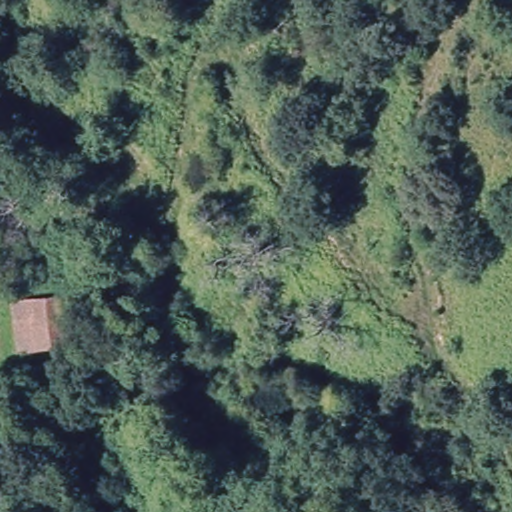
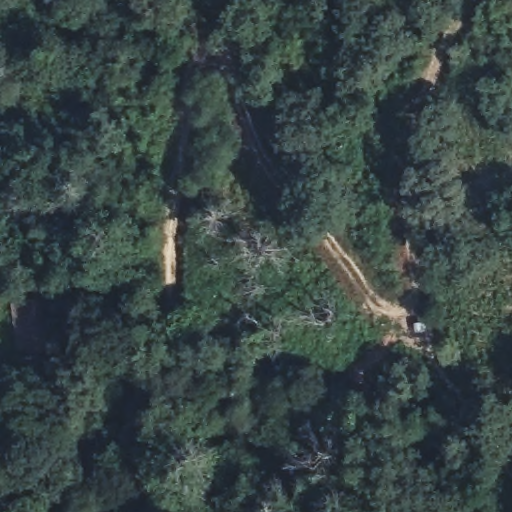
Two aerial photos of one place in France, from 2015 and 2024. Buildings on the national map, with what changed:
unchanged [(49,299),(53,343),(6,346),(1,302),(20,301),(49,299)]

